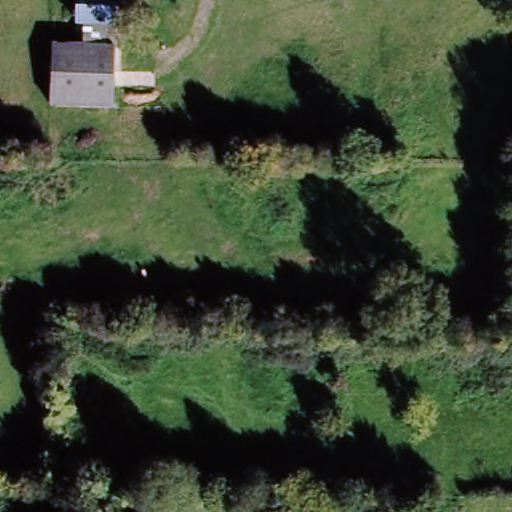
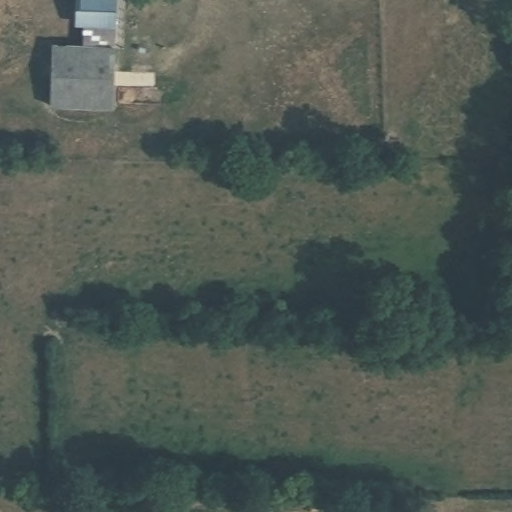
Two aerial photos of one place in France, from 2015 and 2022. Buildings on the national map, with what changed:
unchanged [(48,40),(74,41),(78,0),(116,0),(110,110),(44,109),(48,40)]

